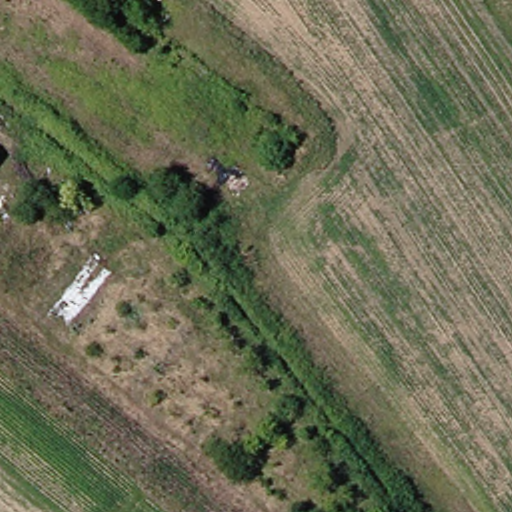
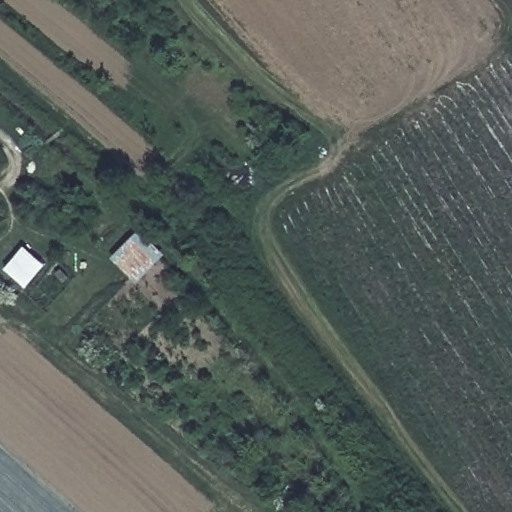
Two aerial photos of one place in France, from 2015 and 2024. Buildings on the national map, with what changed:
new [(165,256),(137,283),(112,258),(140,231),(165,256)]

